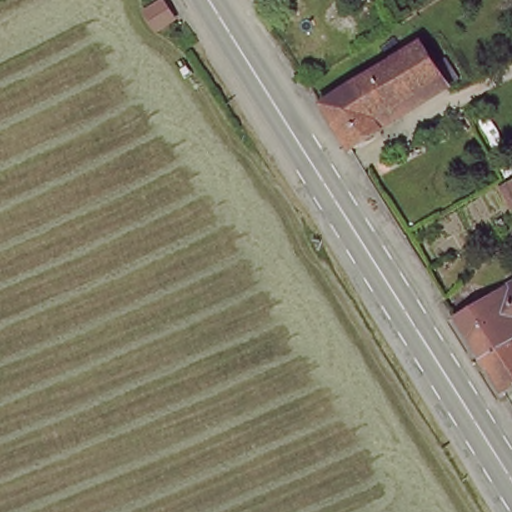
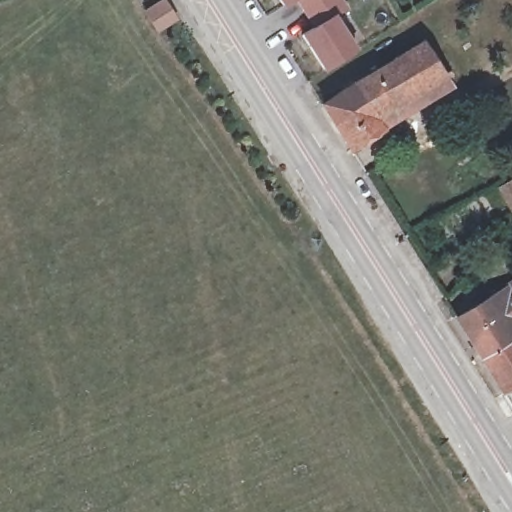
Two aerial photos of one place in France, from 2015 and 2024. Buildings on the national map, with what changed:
unchanged [(155,32),(141,9),(155,0),(165,0),(175,17),(155,32)]
new [(276,0),(296,0),(282,9),(276,0)]
new [(334,16),(355,49),(322,71),(300,35),(311,27),(296,0),(343,0),(349,8),(334,16)]
unchanged [(349,146),(321,102),(419,39),(435,65),(444,57),(459,81),(446,87),(380,127),(349,146)]
unchanged [(512,165),(512,185),(504,170),(512,165)]
unchanged [(510,207),(496,213),(490,203),(504,197),(510,207)]
unchanged [(470,336),(457,316),(512,280),(512,335),(482,356),(470,336)]
unchanged [(495,376),(482,356),(512,335),(512,382),(502,387),(495,376)]

